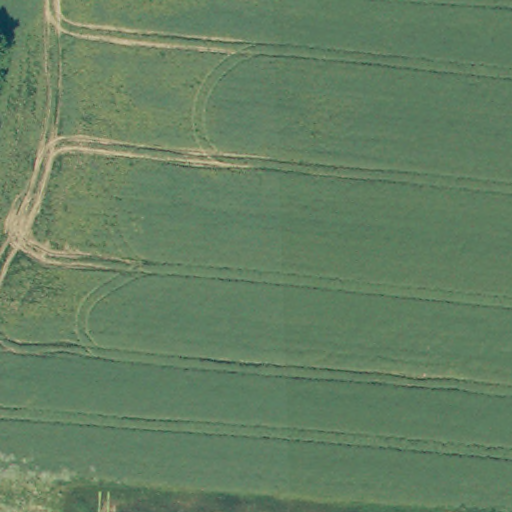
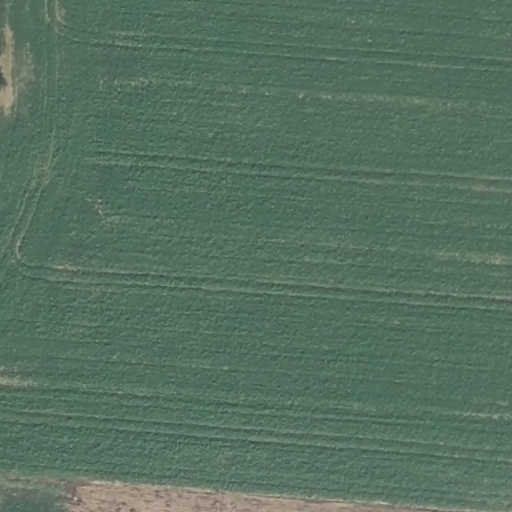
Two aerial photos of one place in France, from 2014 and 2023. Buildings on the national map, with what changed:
[]

